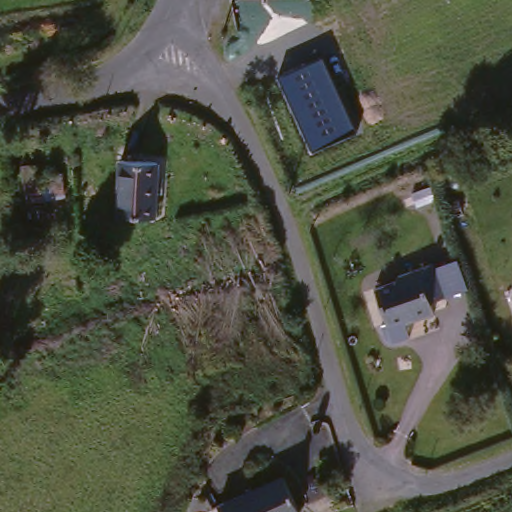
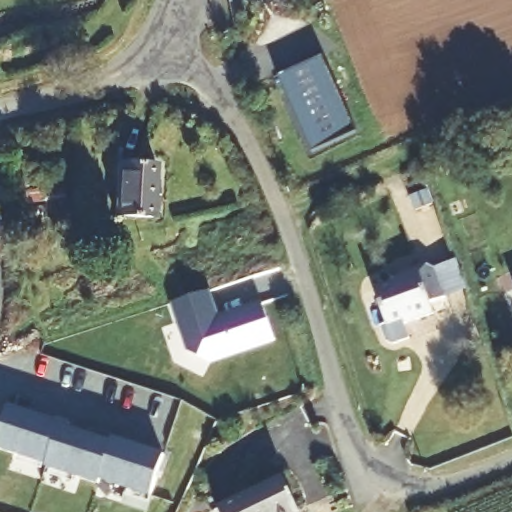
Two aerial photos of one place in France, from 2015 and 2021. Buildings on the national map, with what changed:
unchanged [(311,153),(278,78),(323,59),(355,131),(311,153)]
unchanged [(115,217),(116,163),(158,165),(154,219),(115,217)]
unchanged [(46,219),(27,222),(23,180),(62,175),(65,199),(46,202),(46,219)]
unchanged [(24,255),(23,229),(42,230),(42,255),(24,255)]
unchanged [(440,310),(409,322),(415,336),(398,343),(390,339),(385,324),(391,322),(378,289),(398,282),(402,275),(432,264),(440,265),(461,258),(473,286),(450,294),(436,299),(440,310)]
new [(208,291),(216,318),(260,304),(273,340),(209,361),(185,349),(171,303),(208,291)]
new [(56,425),(55,427),(109,446),(111,442),(163,458),(149,499),(99,482),(97,487),(44,468),(45,466),(0,451),(0,428),(6,409),(56,425)]
unchanged [(215,509),(283,478),(300,512),(216,512),(215,509)]

